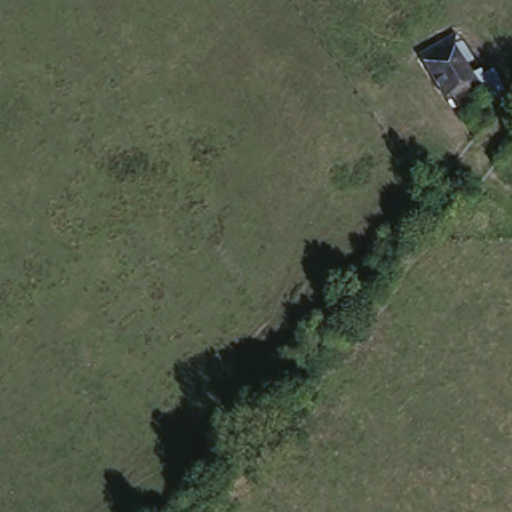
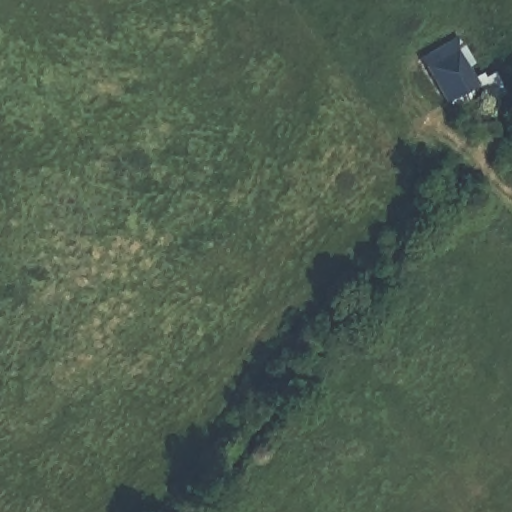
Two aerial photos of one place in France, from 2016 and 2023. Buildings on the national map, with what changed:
unchanged [(506,87),(489,98),(478,87),(450,103),(423,54),(459,33),(474,61),(466,66),(475,81),(496,69),(506,87)]

